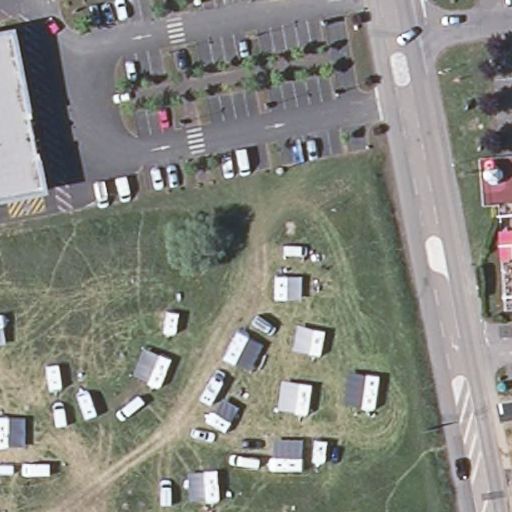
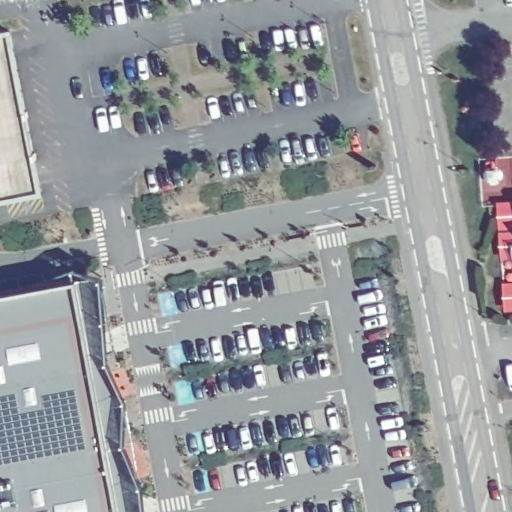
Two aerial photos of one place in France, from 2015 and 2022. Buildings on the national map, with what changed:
unchanged [(11,34),(38,195),(0,202),(0,36),(11,34)]
new [(0,512),(0,297),(76,283),(118,512),(0,512)]

